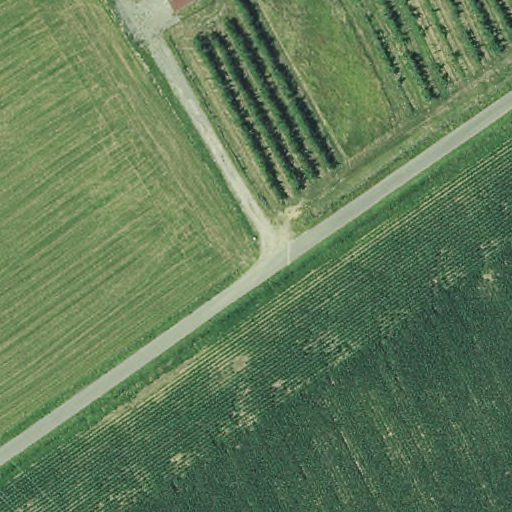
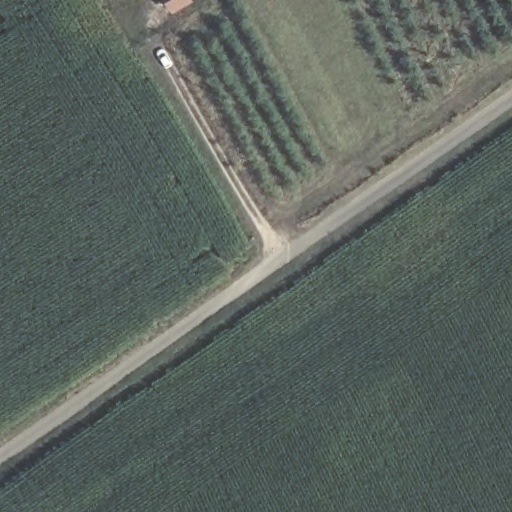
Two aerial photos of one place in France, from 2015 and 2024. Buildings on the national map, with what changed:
unchanged [(172,14),(164,0),(193,0),(195,2),(172,14)]

